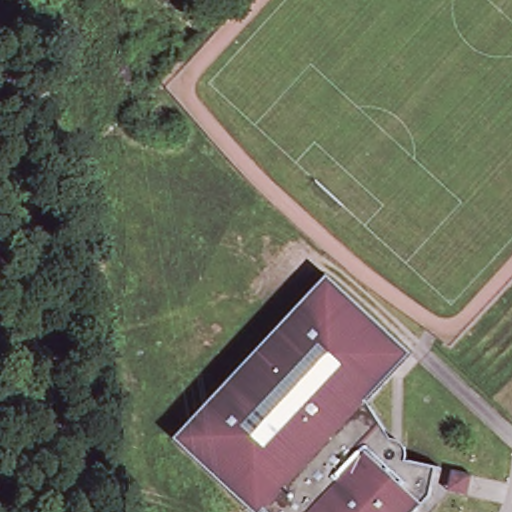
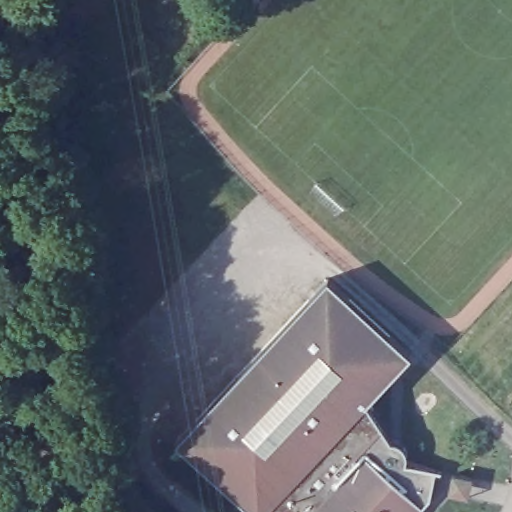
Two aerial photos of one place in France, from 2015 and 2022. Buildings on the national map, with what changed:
unchanged [(413,359),(369,405),(395,447),(401,448),(407,455),(407,464),(439,474),(431,503),(423,512),(249,512),(176,442),(330,281),(413,359)]
unchanged [(472,475),(467,496),(444,489),(452,469),(472,475)]

